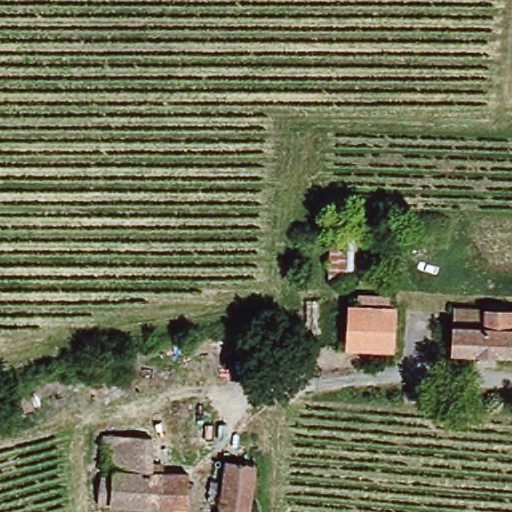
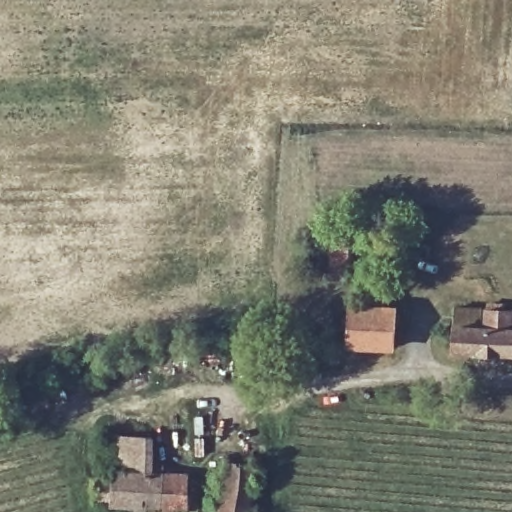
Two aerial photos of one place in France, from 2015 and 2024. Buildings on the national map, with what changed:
unchanged [(327,227),(350,228),(352,281),(324,281),(327,227)]
unchanged [(452,306),(512,310),(512,351),(450,347),(452,306)]
unchanged [(387,311),(385,349),(338,346),(340,307),(387,311)]
unchanged [(179,512),(163,512),(92,503),(96,478),(109,479),(110,471),(100,469),(105,431),(156,438),(152,473),(185,479),(179,512)]
unchanged [(248,464),(244,512),(213,512),(218,461),(248,464)]

